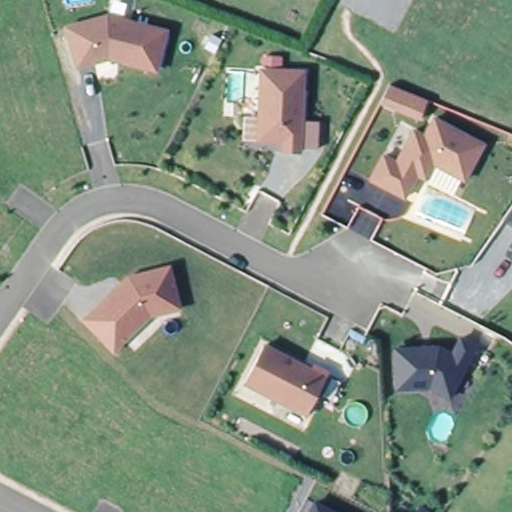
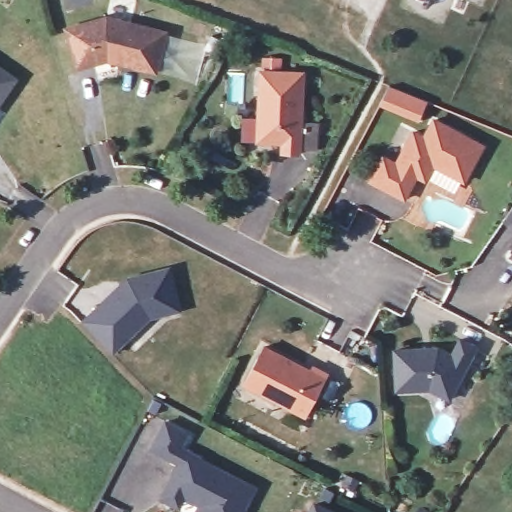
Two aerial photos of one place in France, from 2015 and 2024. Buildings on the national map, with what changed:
unchanged [(155,67),(121,58),(118,54),(111,53),(76,63),(66,24),(106,13),(165,28),(155,67)]
unchanged [(303,118),(321,120),(320,149),(301,149),(301,154),(281,154),(281,144),(257,144),(259,67),(261,54),(280,54),(280,68),(303,68),(303,118)]
new [(0,100),(0,69),(15,79),(0,100)]
unchanged [(416,119),(392,109),(377,104),(386,86),(400,91),(416,97),(424,100),(416,119)]
unchanged [(462,180),(431,165),(422,179),(413,176),(403,199),(369,180),(381,157),(394,164),(412,131),(423,136),(431,119),(479,145),(462,180)]
unchanged [(505,218),(512,208),(512,223),(505,218)]
unchanged [(113,353),(82,323),(127,278),(168,266),(180,308),(150,316),(113,353)]
unchanged [(452,394),(433,385),(398,386),(396,346),(438,346),(453,350),(459,334),(475,340),(452,394)]
unchanged [(303,417),(241,384),(262,347),(307,371),(310,367),(325,374),(303,417)]
new [(162,422),(184,434),(177,448),(197,458),(195,461),(250,489),(239,510),(241,511),(240,512),(193,512),(197,506),(164,488),(171,474),(178,472),(176,465),(148,449),(162,422)]
unchanged [(311,501),(332,512),(304,512),(311,501)]
unchanged [(415,508),(420,512),(412,512),(415,508)]

